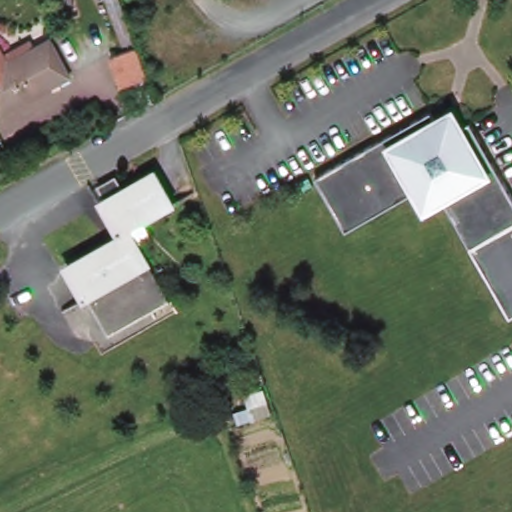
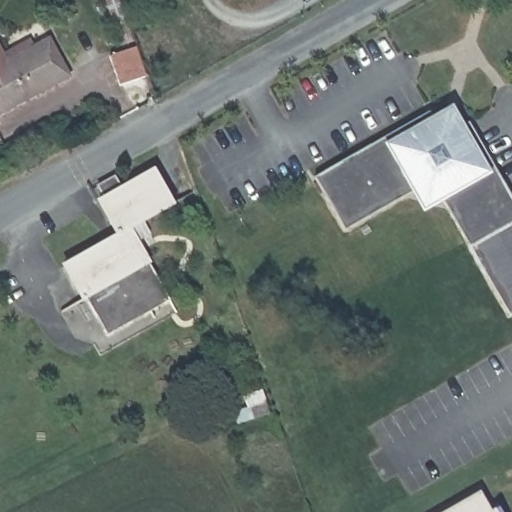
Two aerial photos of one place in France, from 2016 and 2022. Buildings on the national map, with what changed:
unchanged [(108,57),(121,51),(114,30),(128,25),(147,75),(120,85),(108,57)]
unchanged [(0,32),(11,50),(52,26),(72,75),(2,117),(0,114),(0,32)]
unchanged [(436,116),(440,113),(457,119),(461,122),(470,118),(512,193),(512,219),(470,242),(442,194),(437,197),(417,192),(415,187),(345,226),(314,173),(391,129),(411,117),(430,106),(436,116)]
unchanged [(174,199),(130,223),(149,257),(167,295),(105,331),(84,295),(65,261),(118,231),(99,197),(105,193),(99,182),(115,172),(122,183),(154,165),(174,199)]
unchanged [(470,242),(512,219),(512,316),(470,242)]
new [(481,491),(492,511),(497,508),(500,512),(444,512),(481,491)]

